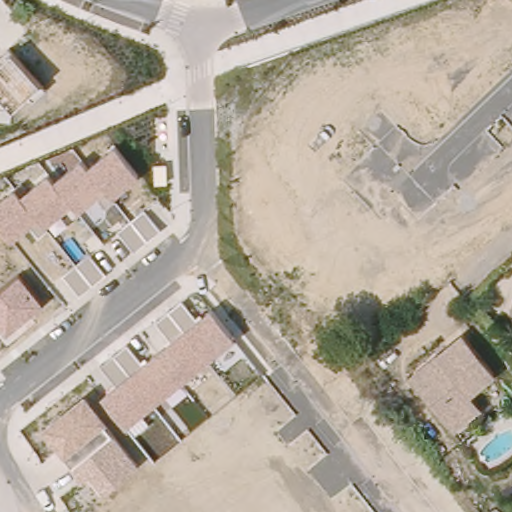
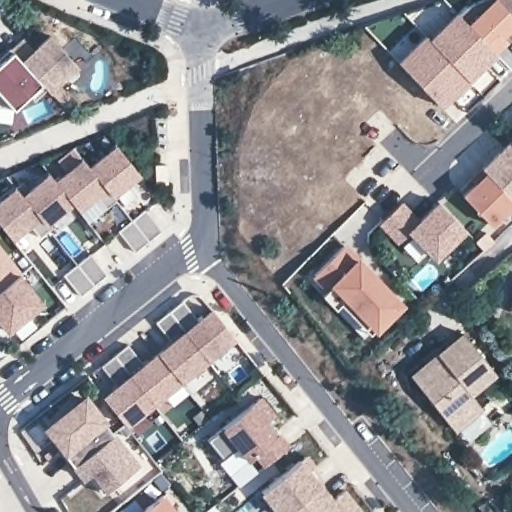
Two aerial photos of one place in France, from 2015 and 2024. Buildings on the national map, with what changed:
new [(512,24),(500,35),(506,41),(495,52),(456,12),(464,6),(480,0),(497,0),(512,15),(512,24)]
demolished [(512,0),(512,29),(490,0),(512,0)]
new [(495,52),(467,79),(428,38),(456,12),(495,52)]
new [(40,82),(20,61),(9,49),(22,37),(32,47),(48,32),(78,65),(48,92),(40,82)]
new [(423,33),(428,38),(467,79),(440,107),(397,60),(423,33)]
new [(0,106),(0,57),(9,49),(20,61),(40,82),(12,107),(0,106)]
unchanged [(512,141),(511,141),(512,140),(512,141)]
new [(482,168),(511,141),(512,141),(512,204),(490,225),(462,196),(475,184),(470,180),(482,168)]
unchanged [(13,186),(20,194),(48,173),(52,179),(80,159),(87,167),(115,146),(140,177),(112,198),(104,189),(78,208),(72,201),(37,229),(30,221),(10,235),(0,222),(0,196),(13,186)]
new [(407,231),(395,242),(377,222),(401,199),(419,217),(436,201),(465,230),(434,260),(407,231)]
unchanged [(145,210),(161,231),(148,242),(135,252),(118,231),(131,220),(145,210)]
new [(346,242),(357,254),(405,302),(375,331),(371,335),(340,302),(333,308),(320,294),(325,290),(311,275),(346,242)]
new [(21,271),(19,273),(0,287),(0,244),(21,271)]
unchanged [(90,253),(106,275),(93,285),(80,296),(63,275),(76,264),(90,253)]
demolished [(365,281),(341,301),(323,279),(348,260),(365,281)]
unchanged [(43,303),(6,332),(0,325),(0,287),(19,273),(43,303)]
unchanged [(235,339),(126,425),(102,394),(117,382),(101,365),(127,343),(145,360),(173,337),(157,320),(182,300),(200,316),(210,308),(235,339)]
unchanged [(512,305),(512,311),(510,311),(512,305)]
unchanged [(496,368),(470,388),(495,418),(466,441),(410,370),(464,328),(496,368)]
demolished [(322,343),(338,336),(342,346),(327,353),(322,343)]
unchanged [(138,464),(105,491),(88,471),(80,476),(40,427),(83,392),(138,464)]
new [(259,397),(273,415),(263,423),(274,437),(278,434),(288,447),(265,466),(255,453),(248,460),(238,447),(222,459),(207,439),(259,397)]
new [(320,483),(285,512),(279,512),(261,491),(300,460),(320,483)]
new [(320,483),(332,498),(345,488),(361,509),(357,512),(285,512),(320,483)]
new [(162,495),(176,512),(141,512),(162,495)]

